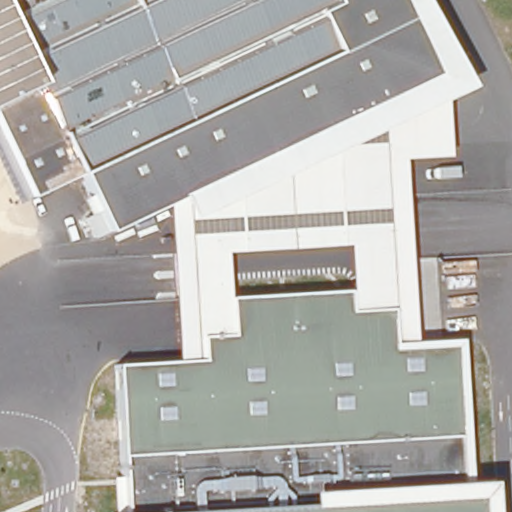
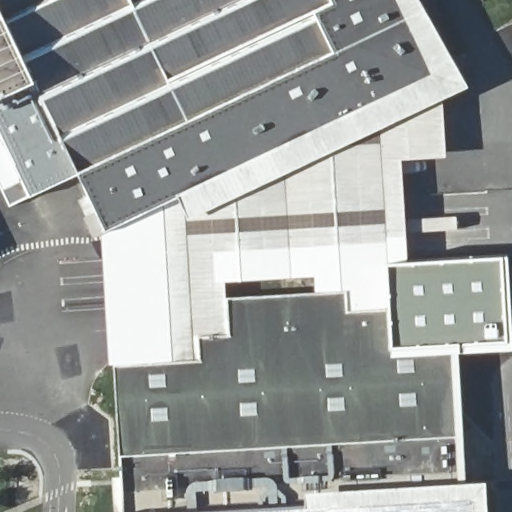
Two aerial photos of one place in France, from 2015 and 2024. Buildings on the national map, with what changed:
unchanged [(400,0),(432,68),(161,197),(104,225),(76,167),(30,189),(13,153),(0,127),(0,0),(400,0)]
unchanged [(414,340),(415,343),(393,345),(390,310),(348,313),(347,292),(350,289),(344,245),(224,252),(227,294),(228,300),(230,331),(231,335),(199,338),(200,360),(175,361),(178,359),(168,205),(164,205),(161,197),(432,68),(400,0),(422,0),(470,86),(442,99),(444,99),(446,156),(402,160),(414,340)]
new [(114,366),(114,365),(110,365),(102,235),(107,231),(104,225),(161,197),(164,205),(168,205),(178,359),(175,361),(117,365),(114,366)]
new [(415,343),(414,340),(409,262),(508,256),(512,324),(512,350),(459,353),(458,340),(415,343)]
unchanged [(200,360),(199,338),(231,335),(228,300),(347,292),(348,313),(390,310),(393,345),(458,340),(468,482),(487,481),(489,512),(125,512),(117,365),(200,360)]

